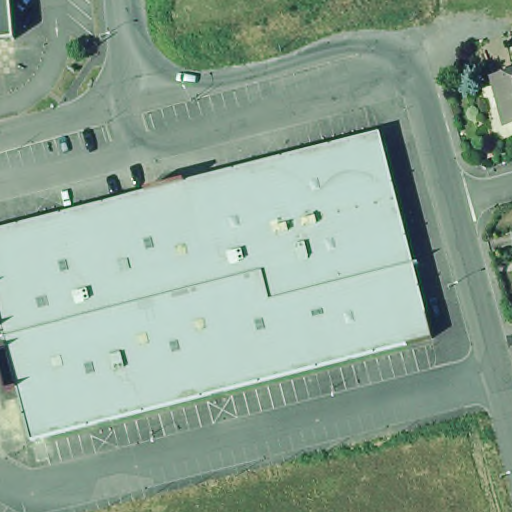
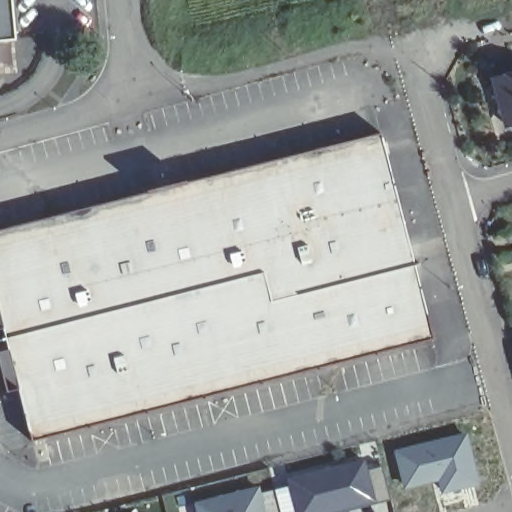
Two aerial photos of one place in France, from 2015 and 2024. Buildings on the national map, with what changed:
unchanged [(14,39),(0,40),(0,0),(11,0),(14,39)]
unchanged [(491,81),(512,75),(512,125),(503,128),(501,122),(491,81)]
unchanged [(213,393),(141,412),(323,146),(376,132),(381,148),(213,393)]
unchanged [(1,354),(5,353),(0,330),(0,227),(323,146),(141,412),(28,440),(15,393),(13,383),(8,385),(1,354)]
unchanged [(430,337),(213,393),(381,148),(430,337)]
new [(481,484),(441,493),(437,481),(402,490),(393,450),(467,431),(481,484)]
new [(366,470),(379,466),(389,500),(336,512),(295,512),(284,474),(361,455),(366,470)]
new [(259,487),(265,512),(196,512),(194,503),(259,487)]

